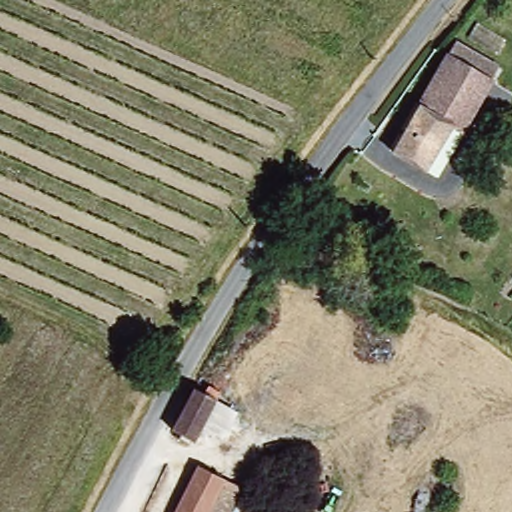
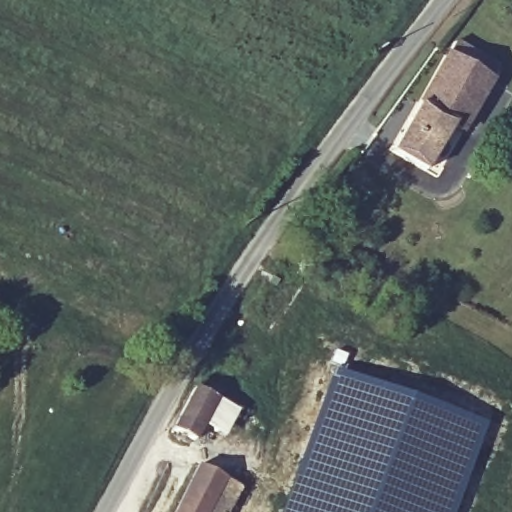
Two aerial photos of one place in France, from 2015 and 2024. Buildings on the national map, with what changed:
unchanged [(449,125),(423,167),(390,146),(447,53),(457,37),(473,49),(498,64),(490,79),(457,130),(449,125)]
new [(328,372),(357,381),(357,378),(367,382),(372,384),(381,387),(431,403),(484,425),(453,512),(277,512),(328,372)]
unchanged [(197,445),(174,433),(196,386),(218,399),(197,445)]
unchanged [(237,482),(222,512),(181,512),(205,466),(237,482)]

